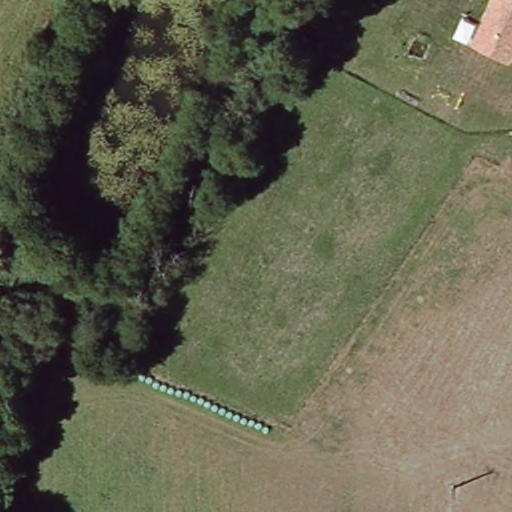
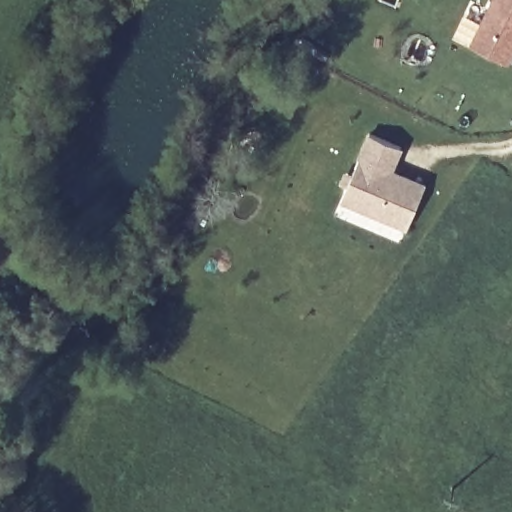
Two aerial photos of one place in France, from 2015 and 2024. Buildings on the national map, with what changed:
unchanged [(470,43),(492,0),(512,0),(512,59),(510,64),(470,43)]
new [(403,147),(395,168),(426,182),(405,229),(340,201),(358,160),(355,159),(367,131),(403,147)]

